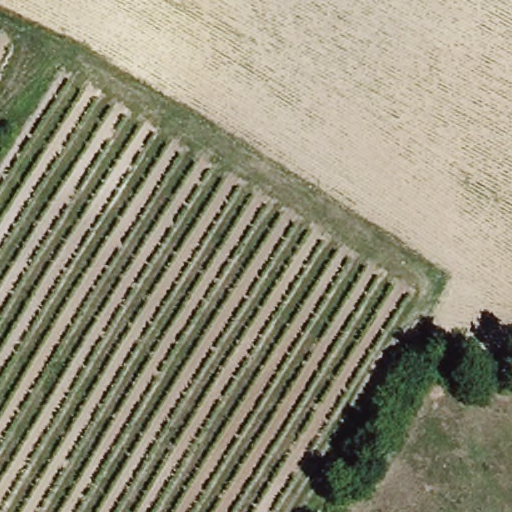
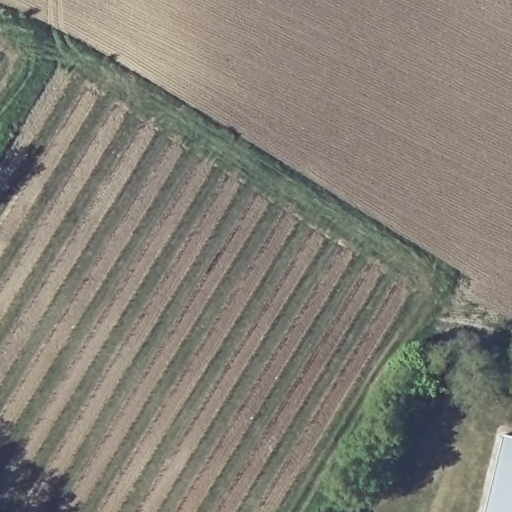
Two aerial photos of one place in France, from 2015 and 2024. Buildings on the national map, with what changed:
new [(512,436),(512,512),(479,512),(498,433),(512,436)]

